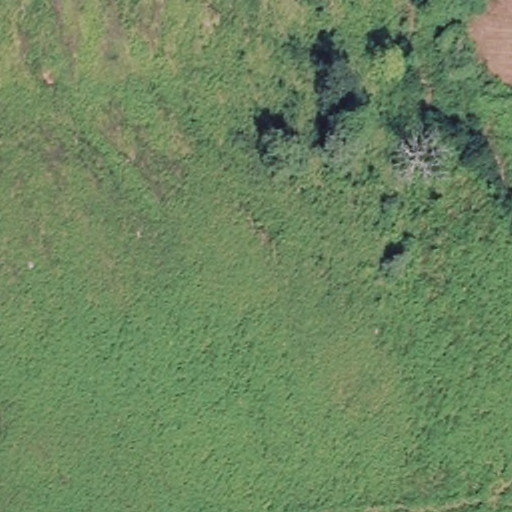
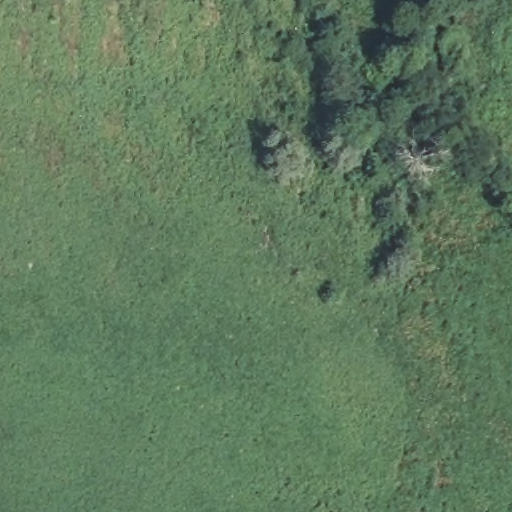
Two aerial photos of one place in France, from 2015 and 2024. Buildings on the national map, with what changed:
unchanged [(429,84),(418,46),(424,45),(438,41),(451,76),(429,84)]

